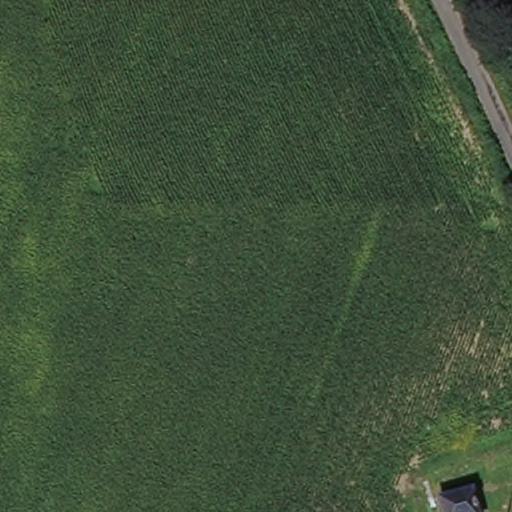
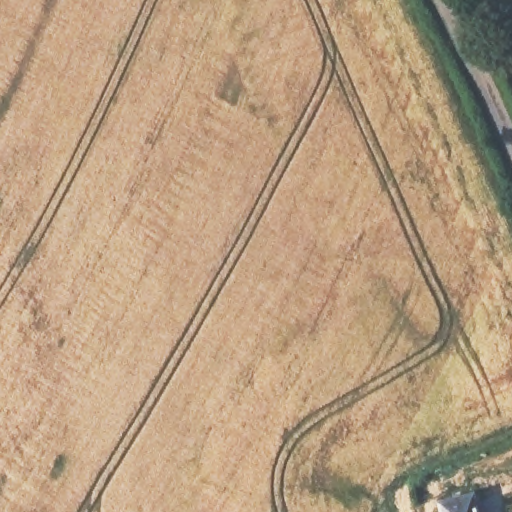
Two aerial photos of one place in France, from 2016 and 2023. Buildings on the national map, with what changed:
unchanged [(451,509),(448,495),(471,489),(475,503),(476,512),(442,512),(451,509)]

